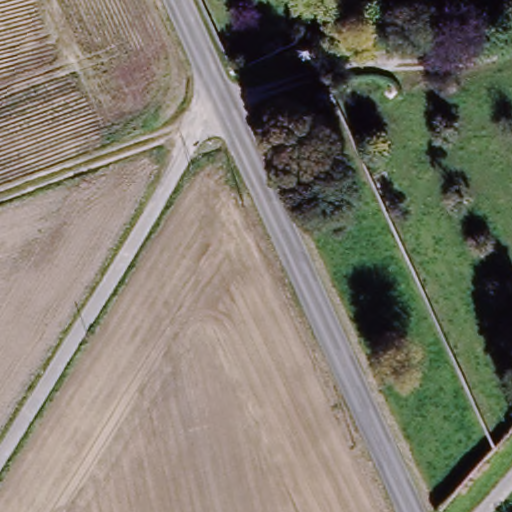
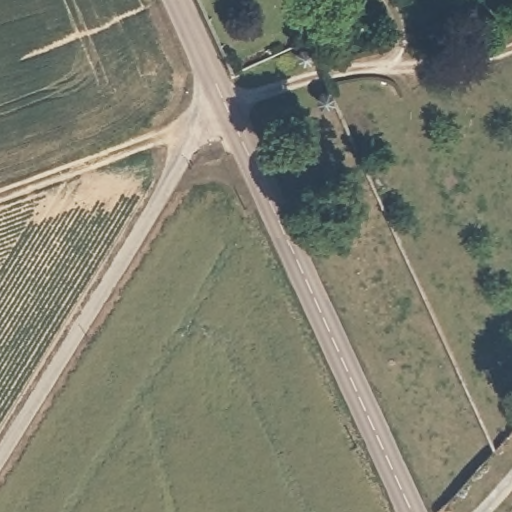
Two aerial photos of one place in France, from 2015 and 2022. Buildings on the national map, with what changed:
unchanged [(310,44),(319,43),(323,48),(324,55),(320,62),(309,63),(303,55),(305,47),(310,44)]
unchanged [(336,106),(330,106),(325,101),(323,96),(324,89),(328,84),(334,82),(340,84),(345,88),(347,94),(346,100),(342,105),(336,106)]

